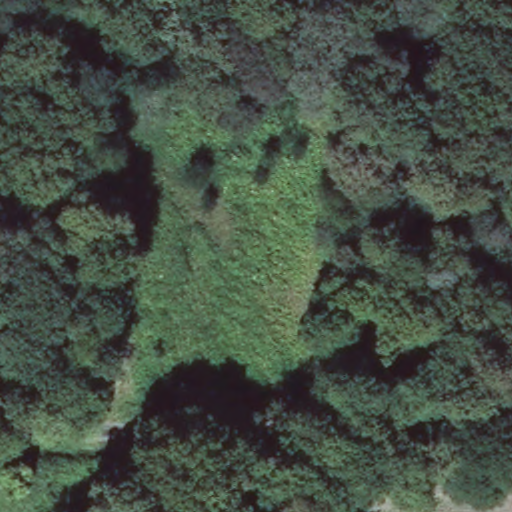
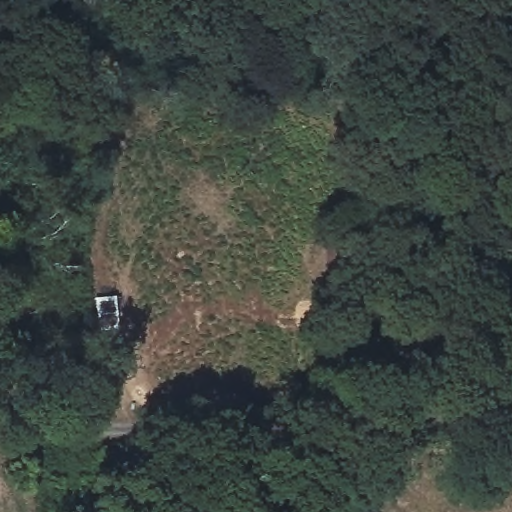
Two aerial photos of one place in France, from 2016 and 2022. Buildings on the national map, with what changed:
unchanged [(100,366),(100,345),(108,345),(125,345),(125,366),(106,366),(100,366)]

